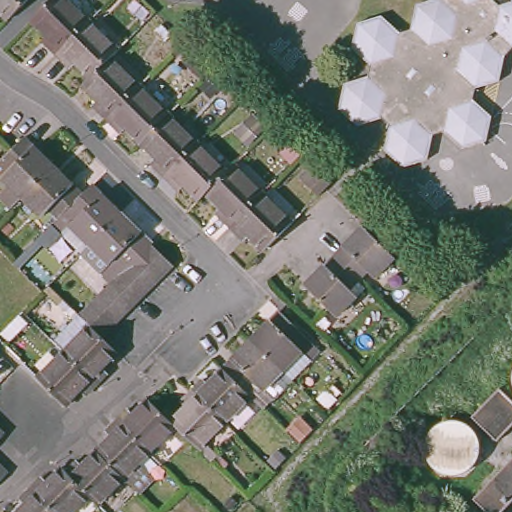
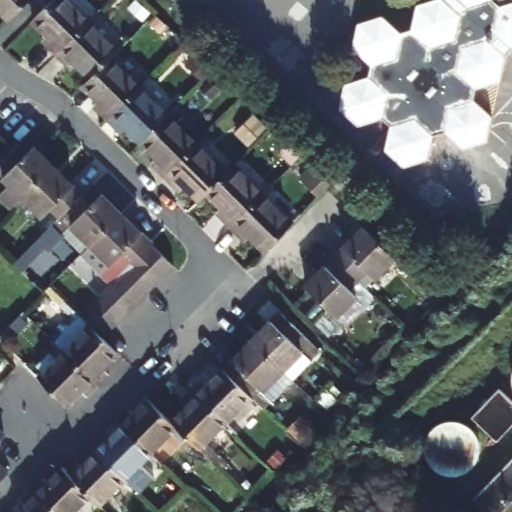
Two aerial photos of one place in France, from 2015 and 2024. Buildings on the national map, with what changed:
unchanged [(10,24),(0,14),(0,0),(32,0),(10,24)]
unchanged [(46,40),(50,35),(33,19),(52,0),(64,0),(85,20),(56,50),(46,40)]
unchanged [(500,6),(512,3),(512,49),(506,55),(499,81),(475,87),(470,100),(488,117),(481,141),(457,149),(438,130),(428,133),(422,156),(396,165),(378,149),(386,121),(377,114),(352,122),(334,104),(342,79),(365,72),(369,61),(351,42),(358,20),(381,11),(401,30),(410,26),(418,1),(424,0),(493,0),(500,6)]
unchanged [(71,56),(67,60),(56,50),(85,20),(115,50),(108,57),(90,75),(71,56)]
unchanged [(90,75),(108,57),(137,85),(105,119),(95,109),(99,104),(80,85),(90,75)]
unchanged [(137,85),(166,114),(138,142),(120,125),(115,129),(105,119),(137,85)]
unchanged [(152,165),(156,160),(138,142),(166,114),(196,141),(162,175),(152,165)]
unchanged [(32,146),(29,150),(47,169),(20,197),(10,209),(0,199),(0,194),(8,186),(1,179),(7,171),(0,164),(0,159),(22,136),(32,146)]
unchanged [(225,170),(201,195),(196,200),(179,182),(173,187),(162,175),(196,141),(225,170)]
unchanged [(216,217),(220,213),(201,195),(225,170),(229,165),(260,195),(226,227),(216,217)]
unchanged [(47,169),(66,187),(70,184),(80,193),(55,220),(45,210),(39,216),(20,197),(47,169)]
unchanged [(90,184),(100,192),(96,195),(115,215),(86,245),(67,226),(58,235),(48,226),(55,220),(80,193),(90,184)]
unchanged [(279,231),(259,251),(240,232),(235,236),(226,227),(260,195),(287,222),(279,231)]
unchanged [(96,291),(106,281),(114,273),(86,245),(115,215),(132,232),(136,229),(147,240),(171,263),(162,272),(151,283),(141,295),(130,305),(120,316),(111,325),(101,336),(115,349),(90,375),(62,348),(87,323),(76,311),(86,301),(96,291)]
unchanged [(362,225),(395,255),(375,275),(366,266),(355,276),(333,255),(362,225)]
unchanged [(346,285),(355,294),(335,315),(303,285),(333,255),(355,276),(346,285)]
unchanged [(263,323),(260,320),(269,309),(307,346),(298,357),(292,351),(275,368),(247,340),(263,323)]
unchanged [(216,365),(225,355),(230,358),(247,340),(275,368),(281,374),(255,402),(243,390),(216,365)]
unchanged [(62,348),(90,375),(63,402),(36,375),(62,348)]
unchanged [(191,391),(216,365),(243,390),(217,417),(191,391)]
unchanged [(192,443),(172,424),(165,417),(191,391),(217,417),(192,443)]
unchanged [(145,397),(165,417),(172,424),(146,450),(120,423),(145,397)]
unchanged [(121,477),(94,450),(120,423),(146,450),(135,461),(150,476),(135,491),(121,477)]
unchanged [(3,434),(0,437),(0,431),(3,434)]
unchanged [(68,476),(94,450),(121,477),(95,503),(87,495),(68,476)]
unchanged [(0,477),(0,458),(9,467),(0,477)]
unchanged [(512,502),(503,512),(487,512),(473,499),(512,459),(512,502)]
unchanged [(68,476),(87,495),(70,512),(51,512),(33,495),(59,468),(68,476)]
unchanged [(51,512),(16,512),(33,495),(51,512)]

